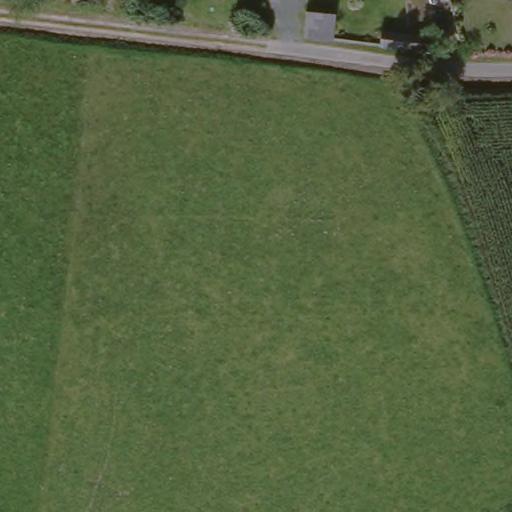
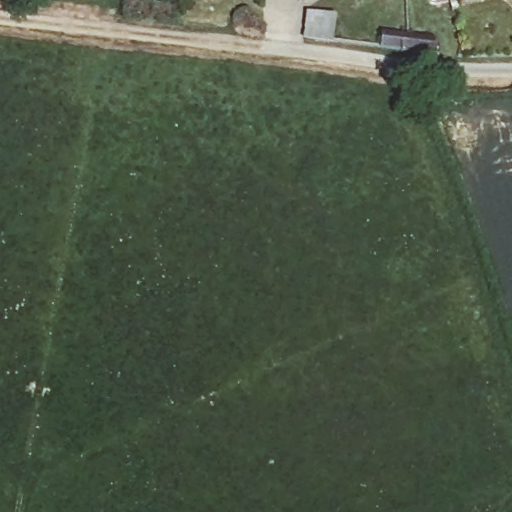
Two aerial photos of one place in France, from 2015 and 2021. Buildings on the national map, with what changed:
unchanged [(285,0),(311,0),(292,13),(285,0)]
unchanged [(401,2),(401,0),(406,0),(403,1),(401,2)]
unchanged [(334,50),(331,50),(301,46),(304,18),(335,21),(334,50)]
unchanged [(427,56),(400,55),(372,51),(374,34),(401,36),(428,38),(427,56)]

